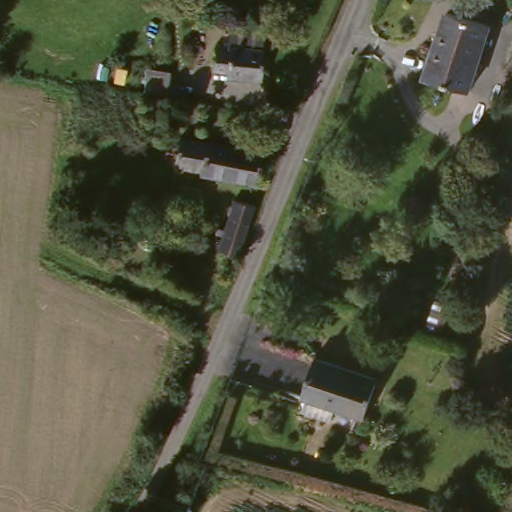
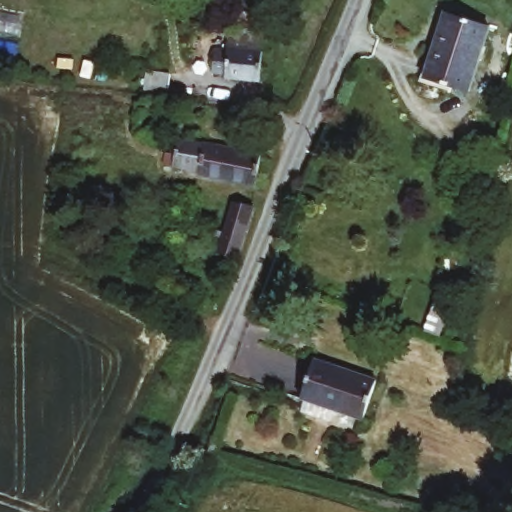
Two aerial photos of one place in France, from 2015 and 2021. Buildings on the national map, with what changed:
unchanged [(429,82),(448,18),(492,31),(472,95),(429,82)]
unchanged [(265,80),(257,80),(222,76),(222,49),(232,49),(234,46),(235,34),(268,36),(267,49),(267,76),(265,80)]
unchanged [(187,139),(265,152),(260,185),(208,176),(207,172),(182,168),(187,139)]
unchanged [(171,202),(186,206),(179,236),(164,232),(171,202)]
unchanged [(225,258),(240,206),(257,212),(257,218),(241,263),(225,258)]
unchanged [(435,297),(450,301),(440,332),(427,327),(435,297)]
unchanged [(320,358),(381,380),(368,420),(307,398),(320,358)]

